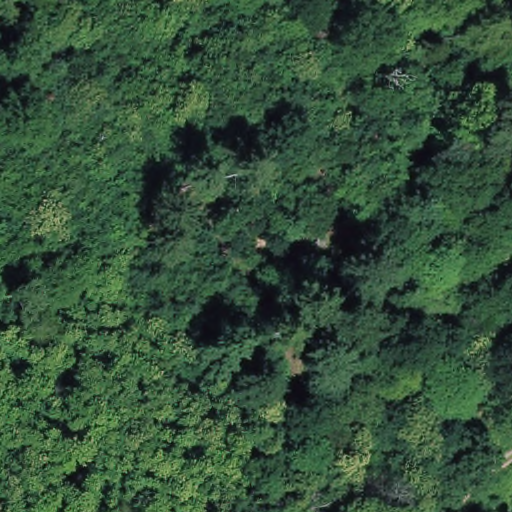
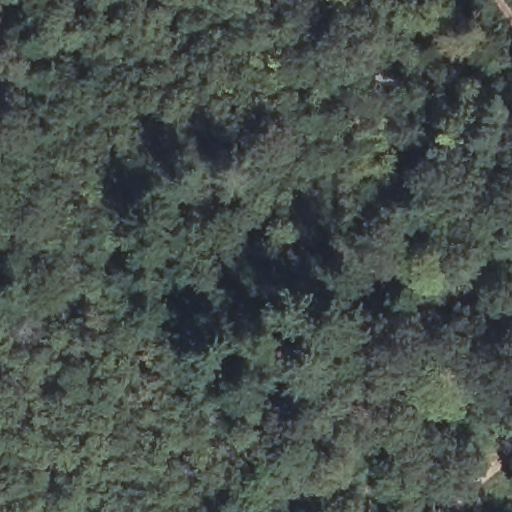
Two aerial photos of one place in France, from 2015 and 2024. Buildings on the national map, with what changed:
[]

